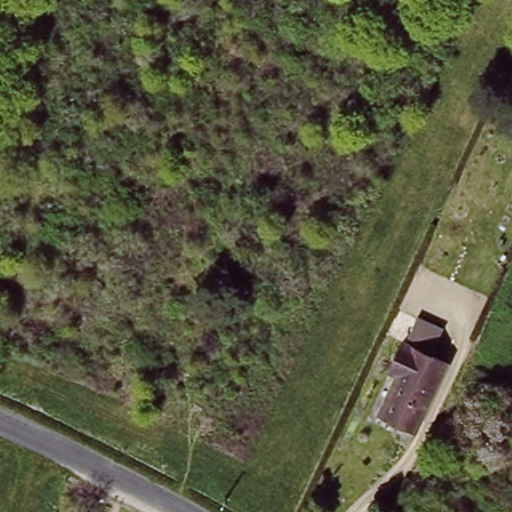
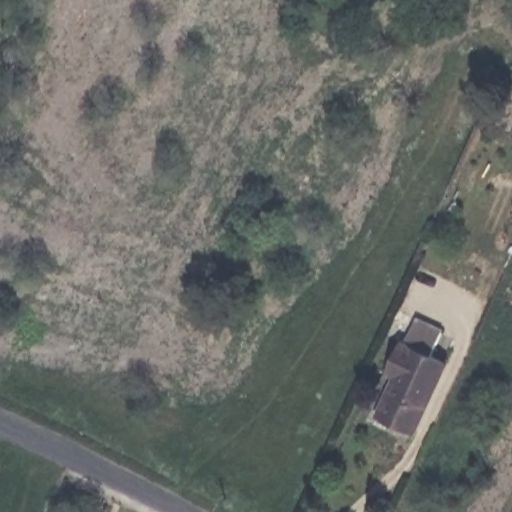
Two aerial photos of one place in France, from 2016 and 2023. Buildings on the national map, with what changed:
unchanged [(410,334),(422,308),(448,320),(437,347),(452,354),(420,426),(415,435),(371,414),(395,363),(408,333),(410,334)]

